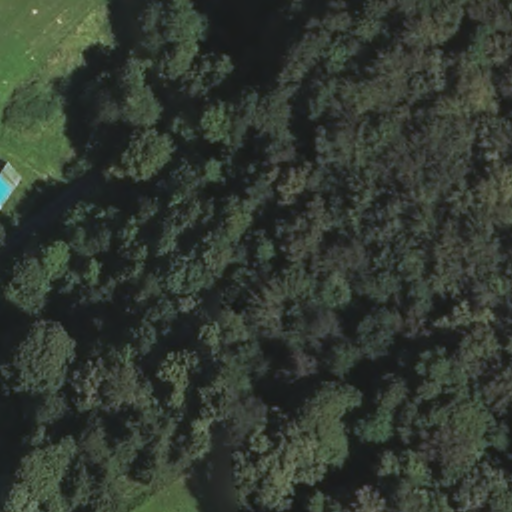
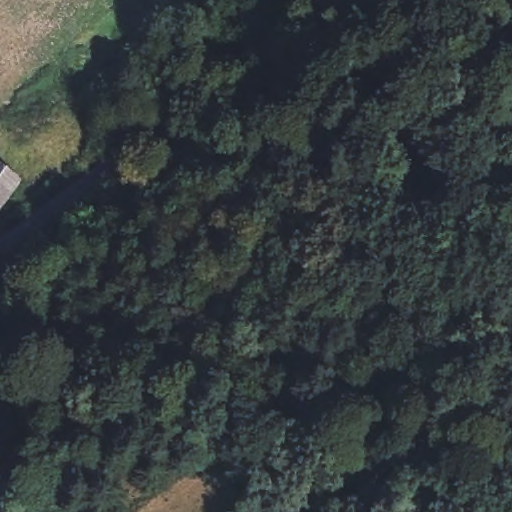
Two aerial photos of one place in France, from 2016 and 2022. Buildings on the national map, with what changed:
unchanged [(0,204),(0,159),(21,173),(0,204)]

